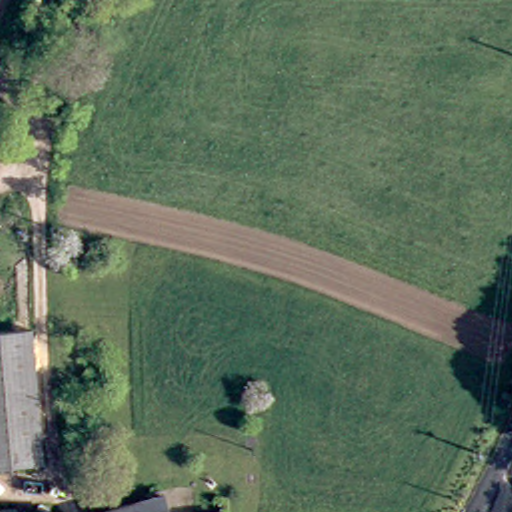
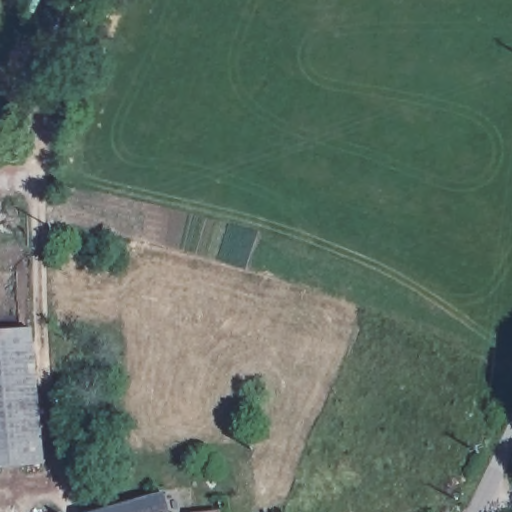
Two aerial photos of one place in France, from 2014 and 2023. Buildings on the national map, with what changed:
unchanged [(32,323),(40,399),(0,402),(0,325),(32,323)]
unchanged [(44,459),(0,464),(0,402),(40,399),(44,459)]
unchanged [(167,512),(101,512),(162,495),(167,512)]
unchanged [(217,512),(193,512),(217,510),(217,512)]

